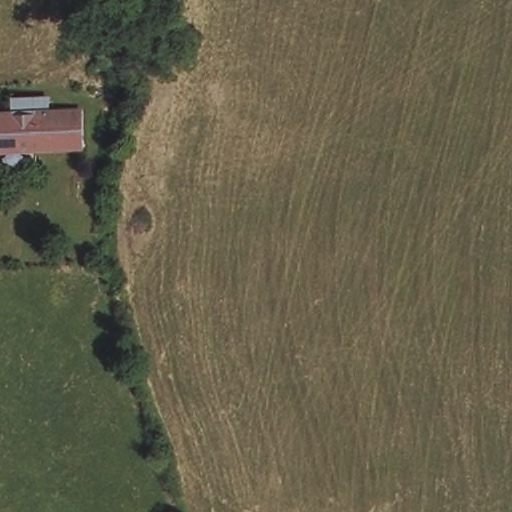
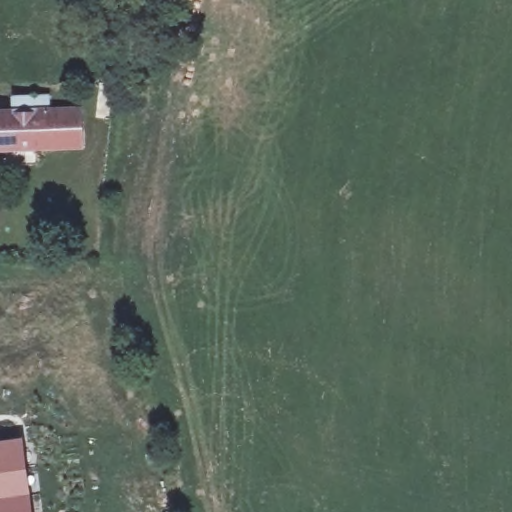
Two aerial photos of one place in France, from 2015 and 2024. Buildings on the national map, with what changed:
unchanged [(15,103),(35,102),(35,115),(36,118),(77,117),(77,150),(57,150),(58,154),(21,155),(20,152),(0,152),(0,119),(15,119),(15,103)]
new [(33,512),(0,512),(0,440),(22,437),(33,512)]

